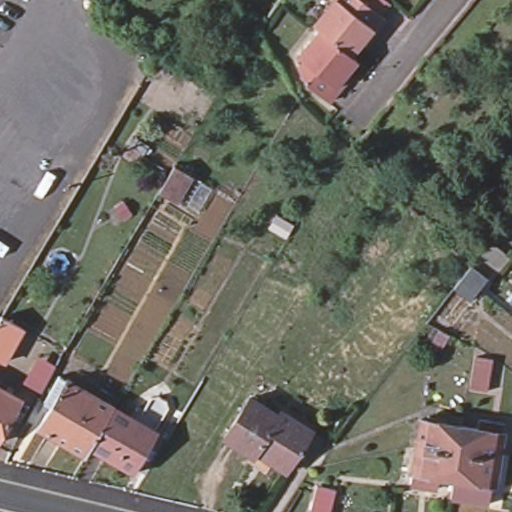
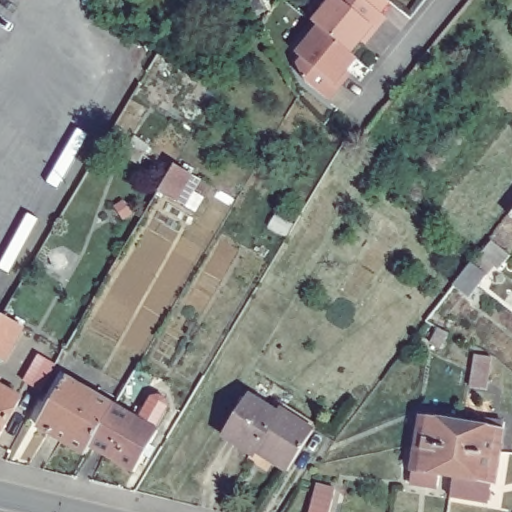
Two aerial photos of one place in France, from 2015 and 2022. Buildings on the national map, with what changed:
unchanged [(304,24),(323,0),(327,0),(363,29),(342,55),(309,28),(304,24)]
unchanged [(353,0),(376,19),(367,32),(363,29),(327,0),(353,0)]
unchanged [(287,67),(293,59),(288,55),(309,28),(342,55),(347,59),(326,86),(330,89),(320,101),(295,81),(287,67)]
unchanged [(142,155),(137,164),(124,156),(129,148),(142,155)]
unchanged [(191,174),(176,200),(159,192),(176,165),(191,174)]
unchanged [(512,212),(512,215),(511,214),(512,212)]
unchanged [(501,268),(494,264),(466,298),(479,309),(462,329),(439,309),(456,289),(453,287),(494,239),(511,254),(501,268)]
unchanged [(6,316),(25,327),(8,361),(0,357),(0,327),(6,316)]
unchanged [(493,358),(489,390),(472,388),(477,356),(493,358)]
unchanged [(91,445),(85,454),(38,427),(50,406),(43,401),(58,374),(66,379),(113,407),(91,445)]
unchanged [(24,399),(0,442),(0,386),(24,399)]
unchanged [(219,438),(243,398),(271,414),(246,455),(219,438)]
unchanged [(283,471),(250,452),(279,404),(312,424),(309,429),(283,471)]
unchanged [(148,457),(143,454),(133,470),(91,445),(113,407),(155,432),(148,444),(153,448),(148,457)]
unchanged [(421,414),(426,414),(426,409),(446,411),(447,409),(464,411),(463,419),(478,422),(479,412),(504,415),(503,425),(500,446),(499,451),(459,446),(418,439),(421,414)]
unchanged [(441,468),(439,481),(412,477),(414,464),(418,439),(459,446),(499,451),(495,476),(492,475),(488,495),(453,489),(455,470),(441,468)]
unchanged [(334,487),(328,512),(309,512),(316,483),(334,487)]

